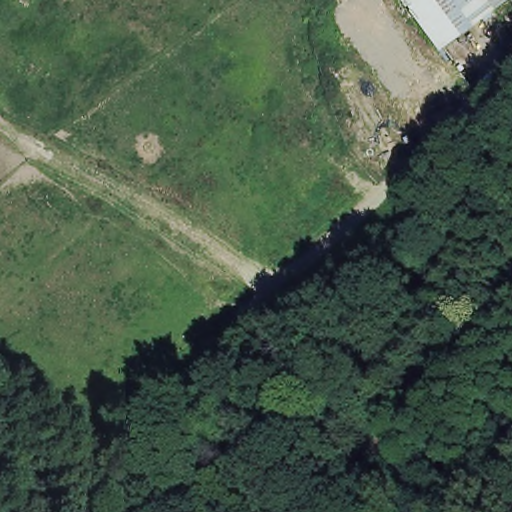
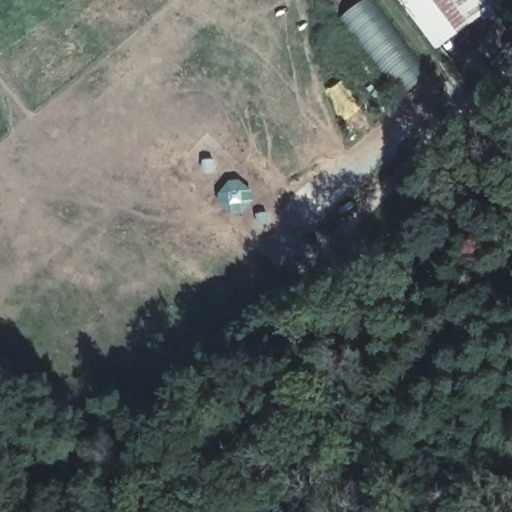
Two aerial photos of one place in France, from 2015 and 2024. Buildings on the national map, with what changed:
new [(399,102),(340,20),(367,0),(377,0),(434,75),(399,102)]
unchanged [(438,0),(460,30),(434,48),(401,0),(438,0)]
unchanged [(438,0),(503,0),(460,30),(438,0)]

